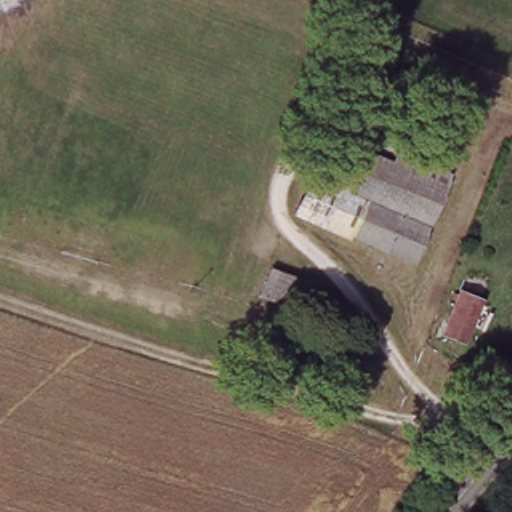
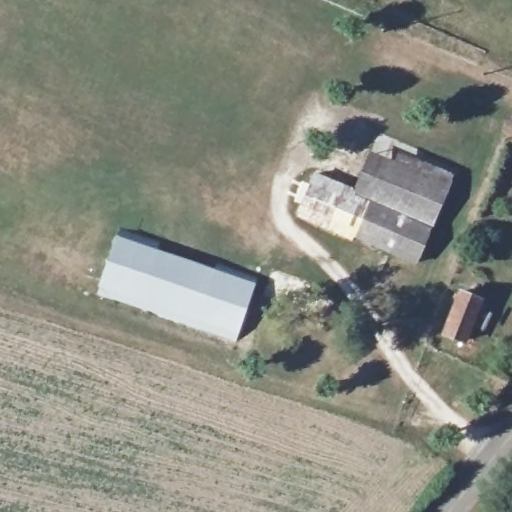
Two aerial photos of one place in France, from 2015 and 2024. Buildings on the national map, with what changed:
unchanged [(348,229),(345,237),(295,219),(309,177),(352,190),(366,152),(413,167),(387,242),(348,229)]
unchanged [(413,167),(445,177),(419,253),(387,242),(413,167)]
new [(235,336),(97,286),(115,236),(254,284),(235,336)]
demolished [(318,283),(331,303),(323,321),(260,300),(272,267),(318,283)]
unchanged [(482,295),(461,348),(445,341),(465,288),(482,295)]

